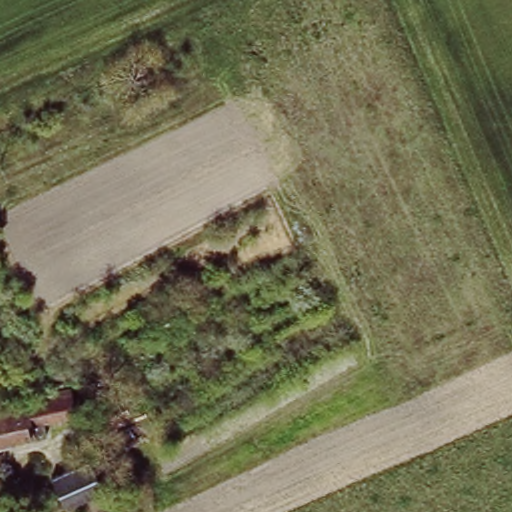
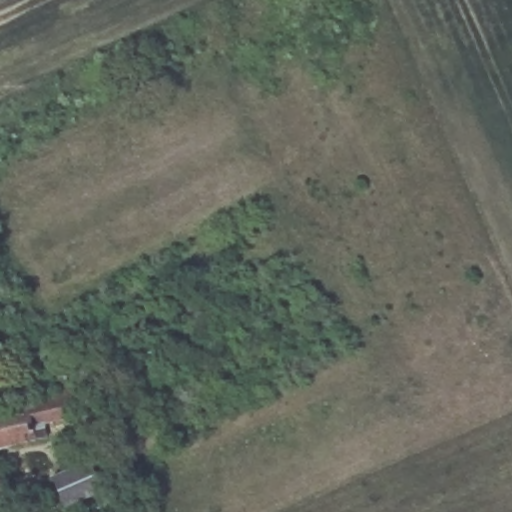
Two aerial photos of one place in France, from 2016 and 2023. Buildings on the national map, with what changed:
unchanged [(0,383),(0,375),(3,382),(0,383)]
unchanged [(53,402),(65,399),(67,407),(76,406),(80,424),(48,430),(51,445),(0,454),(0,418),(55,409),(53,402)]
unchanged [(97,465),(110,494),(72,508),(60,482),(97,465)]

